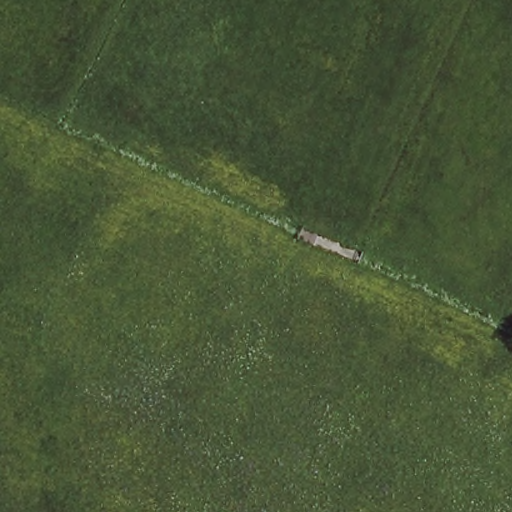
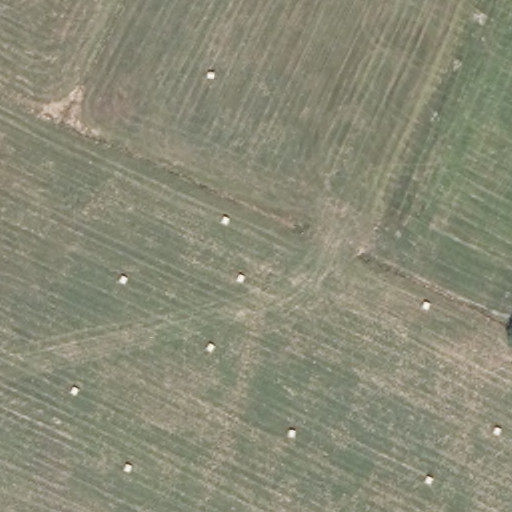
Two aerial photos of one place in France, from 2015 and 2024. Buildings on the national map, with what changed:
[]

